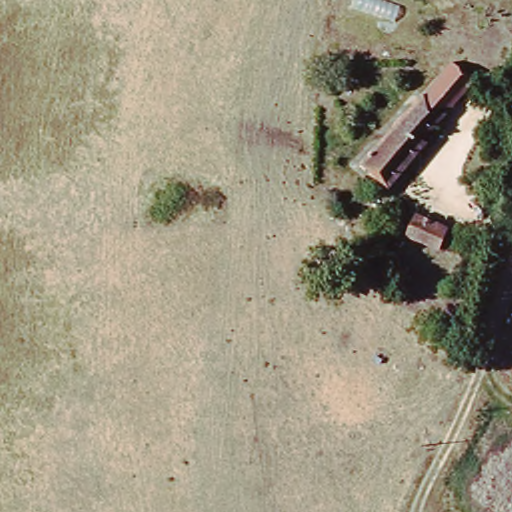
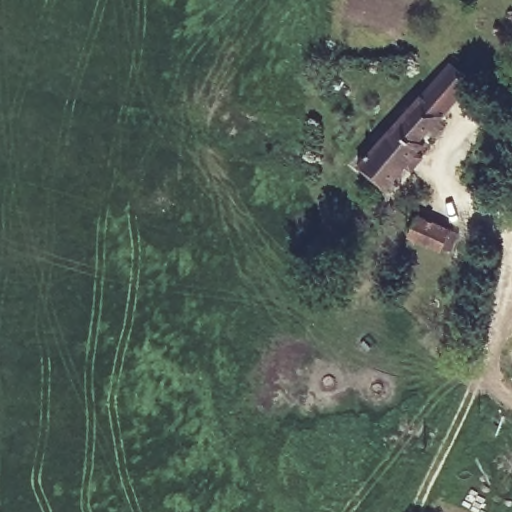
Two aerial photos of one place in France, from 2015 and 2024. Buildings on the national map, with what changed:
unchanged [(472,76),(426,135),(422,147),(390,188),(366,167),(450,60),(472,76)]
unchanged [(445,249),(414,238),(425,214),(455,224),(445,249)]

